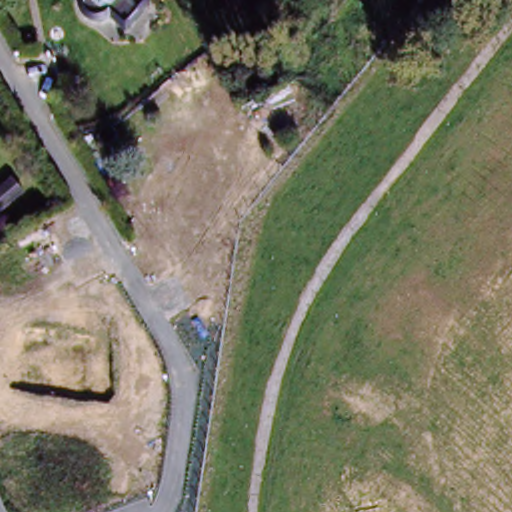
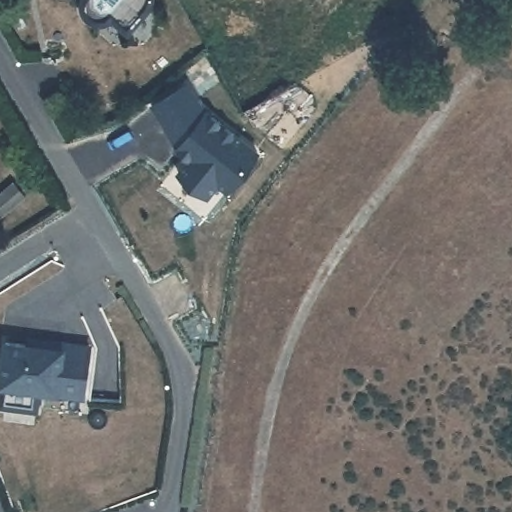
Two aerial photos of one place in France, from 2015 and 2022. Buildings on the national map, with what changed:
unchanged [(152,1),(150,5),(148,9),(132,27),(129,31),(113,17),(109,20),(105,21),(103,22),(99,22),(95,21),(93,20),(91,20),(89,18),(86,15),(84,12),(84,10),(83,5),(84,1),(84,0),(152,0),(152,1)]
new [(189,84),(207,115),(209,112),(259,153),(228,190),(219,182),(208,195),(179,172),(190,159),(178,148),(183,145),(175,134),(174,135),(155,104),(189,84)]
unchanged [(33,212),(4,235),(0,230),(0,213),(21,196),(33,212)]
new [(59,396),(41,393),(39,414),(0,408),(0,378),(4,338),(28,342),(28,335),(91,345),(84,400),(59,396)]

